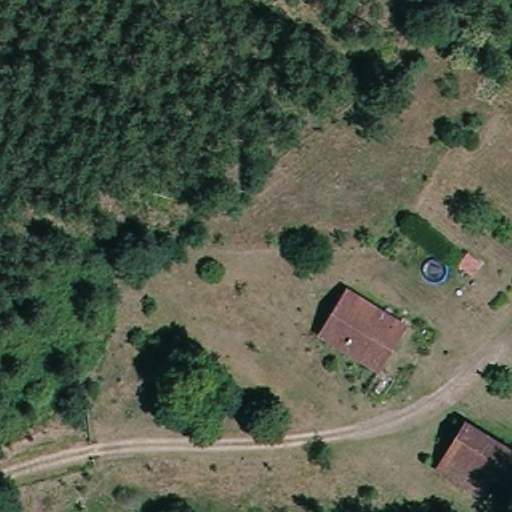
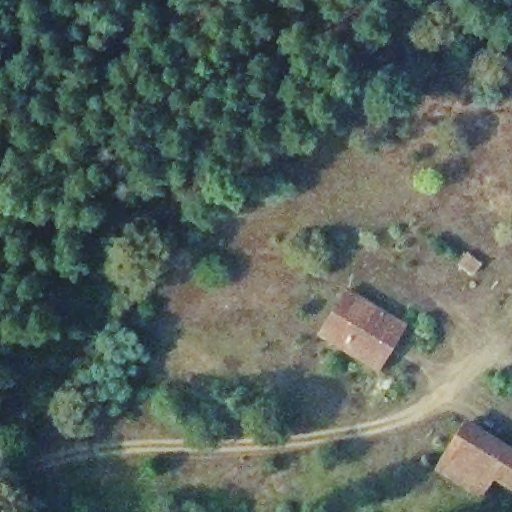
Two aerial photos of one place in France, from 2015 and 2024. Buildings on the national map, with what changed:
unchanged [(381,366),(325,333),(350,290),(406,324),(381,366)]
unchanged [(512,446),(512,481),(488,470),(477,489),(441,469),(470,421),(512,446)]

